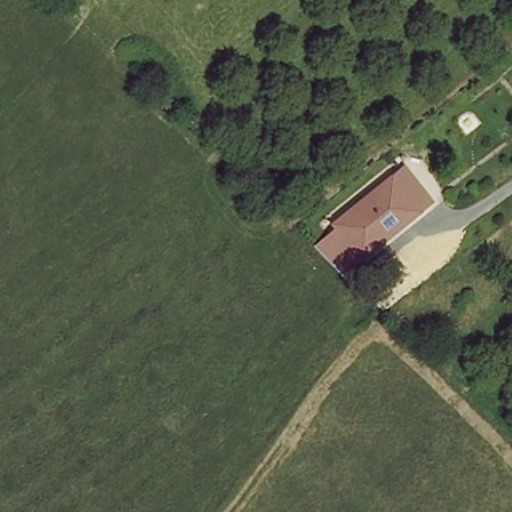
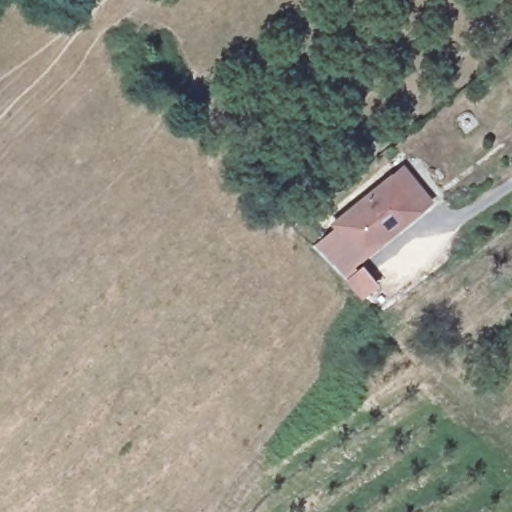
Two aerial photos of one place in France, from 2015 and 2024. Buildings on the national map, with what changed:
unchanged [(331,231),(390,183),(419,218),(359,266),(331,231)]

